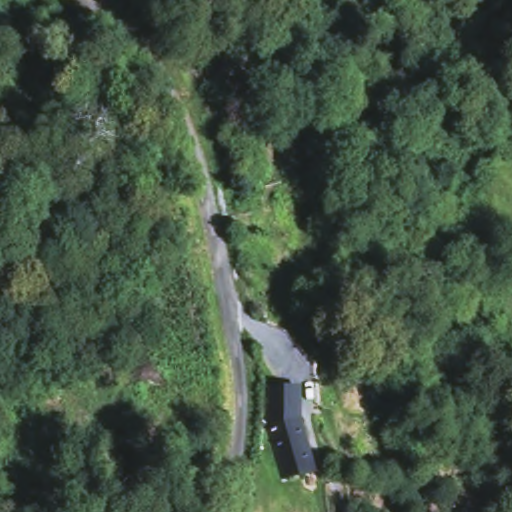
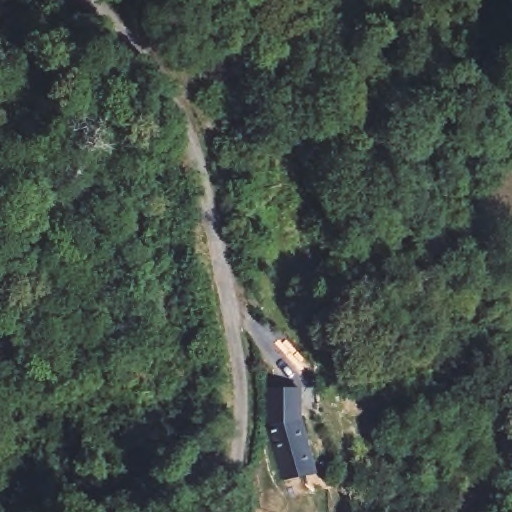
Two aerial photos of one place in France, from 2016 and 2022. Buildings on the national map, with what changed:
unchanged [(282,478),(268,422),(267,392),(283,391),(298,388),(301,416),(315,471),(282,478)]

